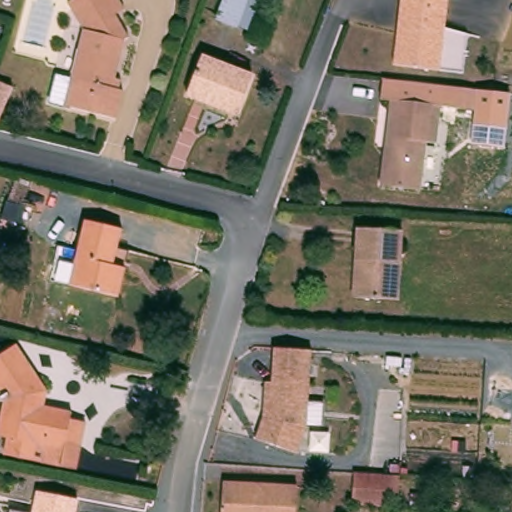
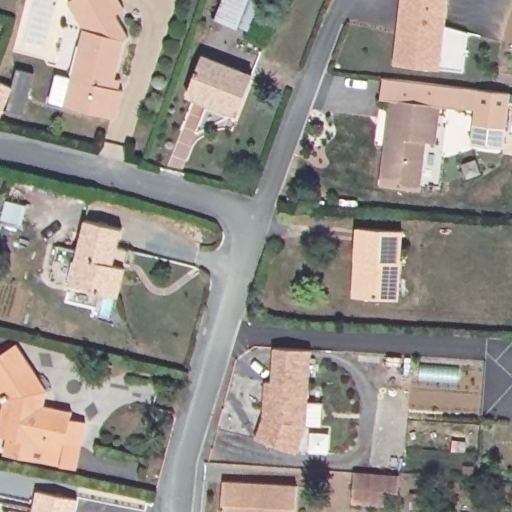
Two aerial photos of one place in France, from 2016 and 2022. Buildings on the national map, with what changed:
unchanged [(80,31),(67,0),(121,0),(123,3),(116,8),(124,27),(113,86),(122,86),(117,117),(49,101),(55,74),(69,77),(80,31)]
unchanged [(217,18),(224,0),(252,0),(242,27),(217,18)]
unchanged [(445,0),(443,28),(465,30),(461,69),(392,63),(398,0),(445,0)]
unchanged [(202,52),(254,72),(238,115),(186,95),(202,52)]
unchanged [(2,64),(16,70),(8,89),(0,109),(0,67),(2,64)]
unchanged [(439,81),(477,84),(476,103),(438,99),(434,143),(423,143),(418,191),(378,187),(388,95),(377,93),(379,76),(439,81)]
unchanged [(84,218),(120,227),(113,250),(131,254),(120,296),(67,285),(84,218)]
unchanged [(354,220),(400,222),(396,298),(350,297),(354,220)]
unchanged [(76,466),(59,462),(3,449),(0,449),(0,404),(3,394),(0,390),(0,355),(15,345),(46,388),(42,401),(71,406),(70,412),(88,418),(76,466)]
unchanged [(264,379),(271,380),(273,346),(311,348),(308,402),(323,402),(322,426),(305,426),(295,452),(255,437),(262,416),(264,379)]
unchanged [(397,471),(394,507),(349,505),(351,468),(397,471)]
unchanged [(223,480),(297,484),(295,512),(220,512),(223,480)]
unchanged [(34,489),(75,498),(73,512),(29,512),(34,489)]

